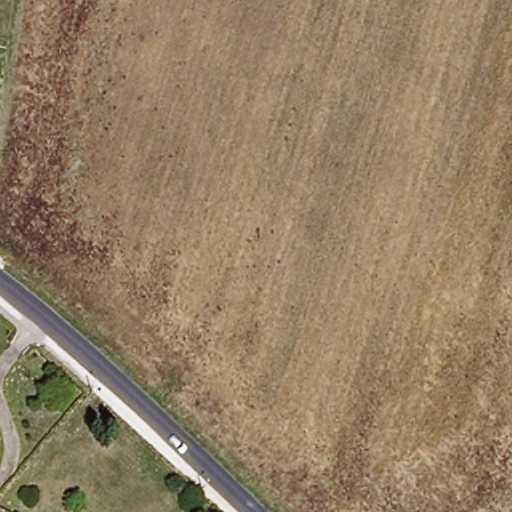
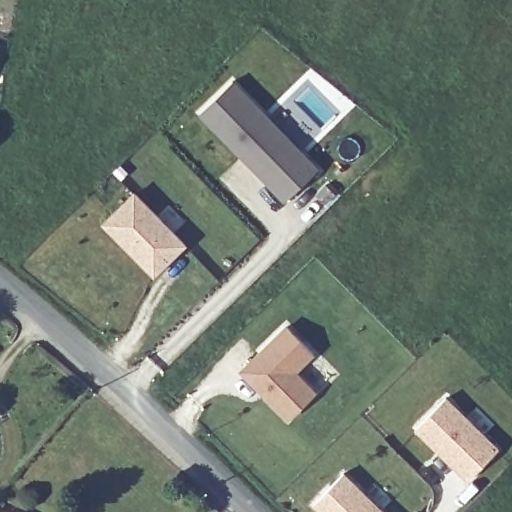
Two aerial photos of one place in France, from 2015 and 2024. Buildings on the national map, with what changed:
new [(231,80),(317,167),(285,199),(199,111),(231,80)]
new [(134,193),(184,245),(152,275),(103,222),(134,193)]
new [(285,326),(311,352),(293,370),(314,392),(287,418),(240,371),(285,326)]
new [(446,397),(500,447),(470,478),(417,427),(446,397)]
new [(384,512),(322,512),(314,504),(343,473),(384,512)]

